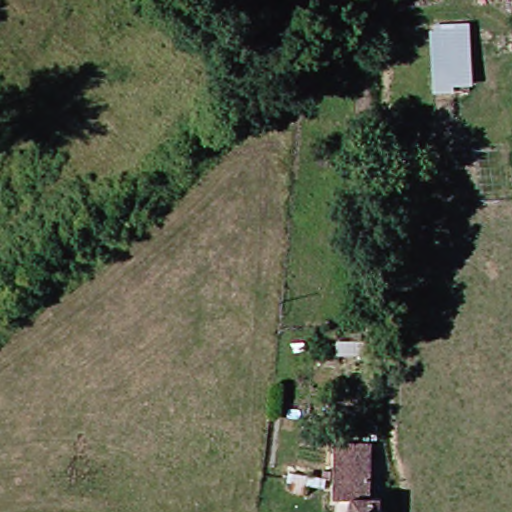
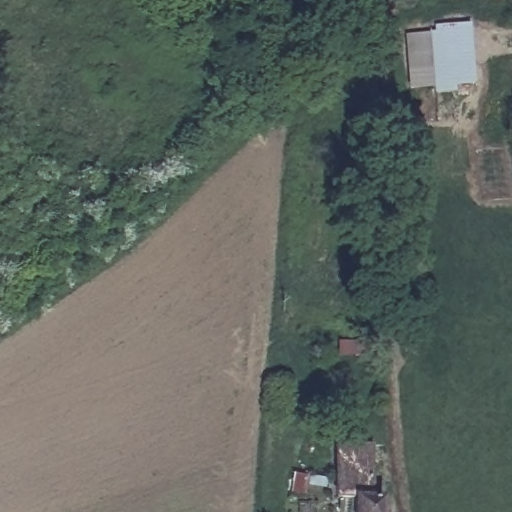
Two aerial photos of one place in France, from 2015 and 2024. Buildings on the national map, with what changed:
unchanged [(468,91),(449,91),(447,96),(424,97),(422,33),(427,32),(428,26),(466,25),(468,91)]
unchanged [(336,499),(336,447),(371,447),(370,500),(382,501),(381,512),(352,512),(352,500),(336,499)]

